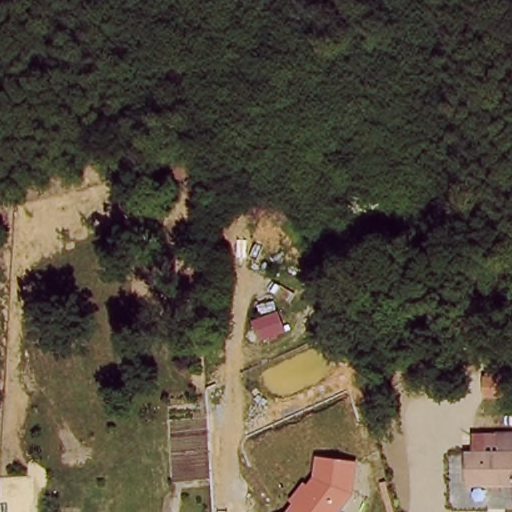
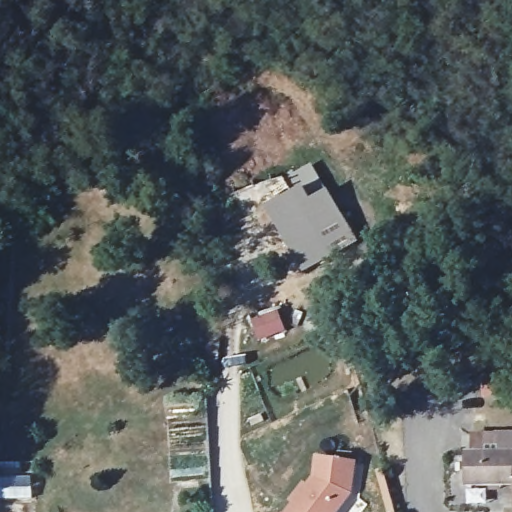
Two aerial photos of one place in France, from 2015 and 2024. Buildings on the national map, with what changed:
new [(301,182),(295,171),(310,163),(319,179),(306,187),(312,197),(325,188),(358,241),(299,275),(262,205),(301,182)]
new [(277,308),(286,332),(255,341),(249,319),(277,308)]
unchanged [(464,485),(463,455),(493,452),(492,432),(512,430),(512,483),(464,485)]
unchanged [(294,503),(289,499),(304,482),(307,485),(315,477),(318,456),(359,461),(353,495),(339,512),(285,512),(294,503)]

